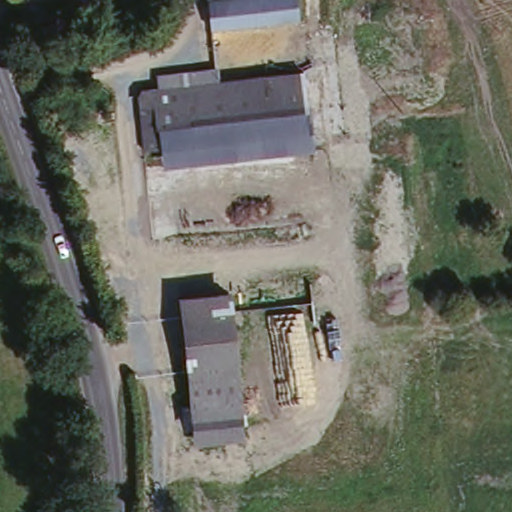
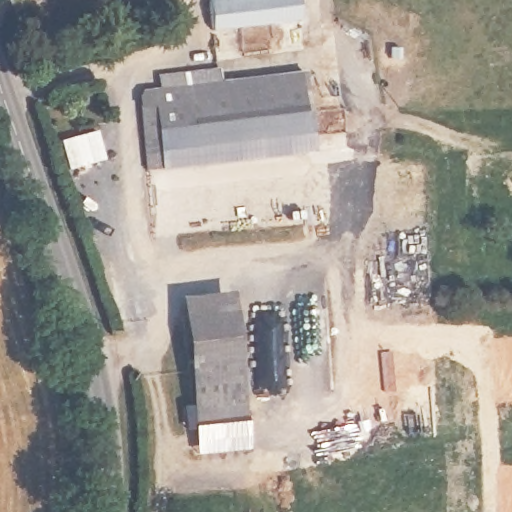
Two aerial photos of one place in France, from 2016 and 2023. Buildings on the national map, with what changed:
unchanged [(204,0),(235,0),(239,28),(208,32),(204,0)]
unchanged [(292,0),(293,20),(239,28),(235,0),(292,0)]
unchanged [(309,110),(143,131),(138,90),(159,87),(157,75),(219,67),(221,80),(304,70),(309,110)]
unchanged [(309,110),(313,150),(148,170),(143,131),(309,110)]
unchanged [(177,300),(230,295),(247,440),(196,447),(177,300)]

